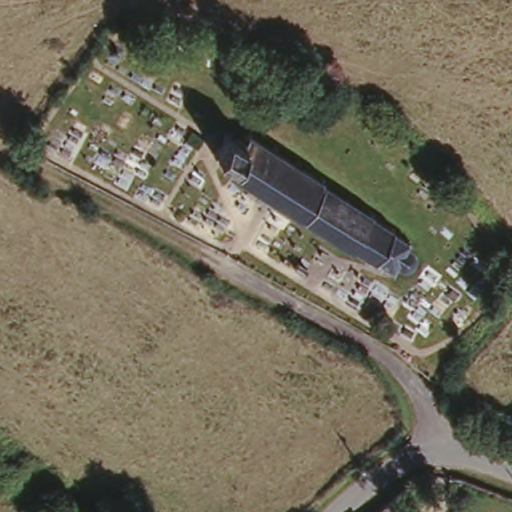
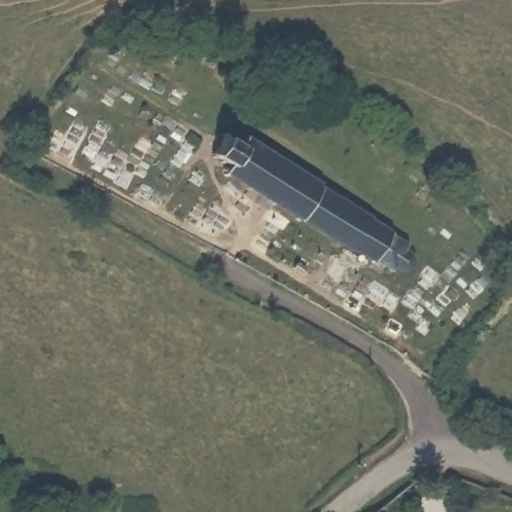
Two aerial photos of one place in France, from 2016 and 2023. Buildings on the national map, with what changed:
unchanged [(231,135),(246,145),(251,133),(398,228),(403,235),(415,245),(420,250),(410,268),(398,268),(378,259),(305,219),(230,171),(236,164),(220,155),(231,135)]
unchanged [(386,512),(371,512),(381,503),(386,512)]

